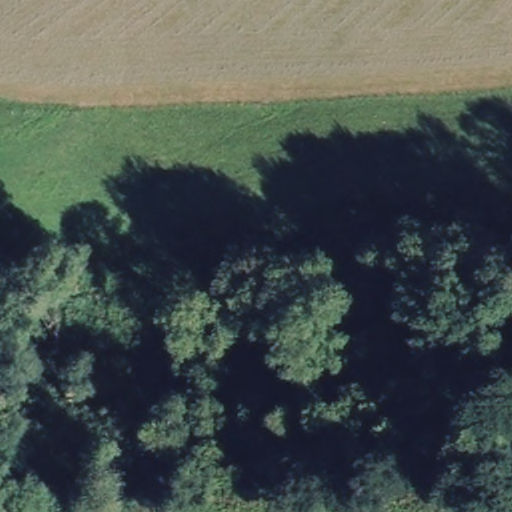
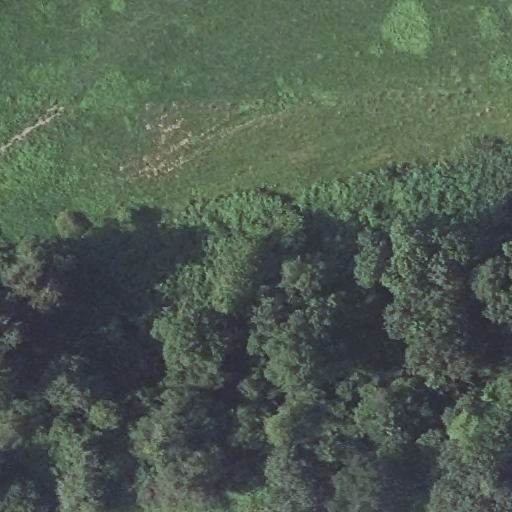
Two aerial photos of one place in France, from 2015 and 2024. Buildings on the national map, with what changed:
[]

